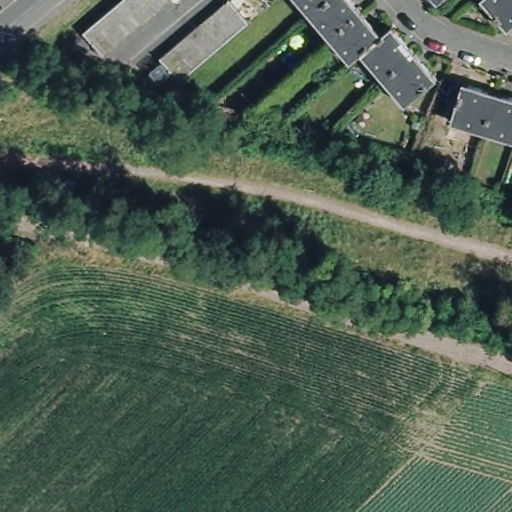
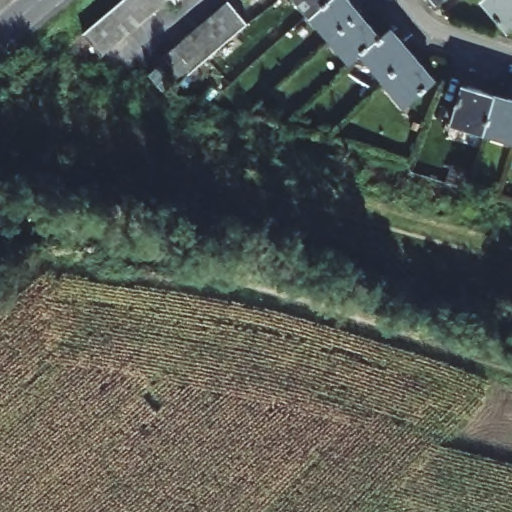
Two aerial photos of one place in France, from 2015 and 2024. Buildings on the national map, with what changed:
unchanged [(83,36),(127,0),(187,0),(178,8),(173,1),(103,60),(83,36)]
unchanged [(311,15),(298,0),(328,0),(311,15)]
unchanged [(311,15),(328,0),(352,0),(363,12),(331,37),(311,15)]
unchanged [(438,1),(437,0),(440,0),(438,1)]
unchanged [(507,30),(482,0),(512,0),(512,26),(507,30)]
unchanged [(229,4),(249,27),(179,85),(160,62),(229,4)]
unchanged [(359,54),(351,61),(331,37),(363,12),(383,35),(360,55),(359,54)]
unchanged [(383,35),(392,27),(413,52),(380,79),(360,55),(383,35)]
unchanged [(413,52),(434,76),(402,104),(380,79),(413,52)]
unchanged [(484,131),(452,122),(464,82),(496,92),(484,131)]
unchanged [(496,92),(512,97),(512,140),(484,131),(496,92)]

